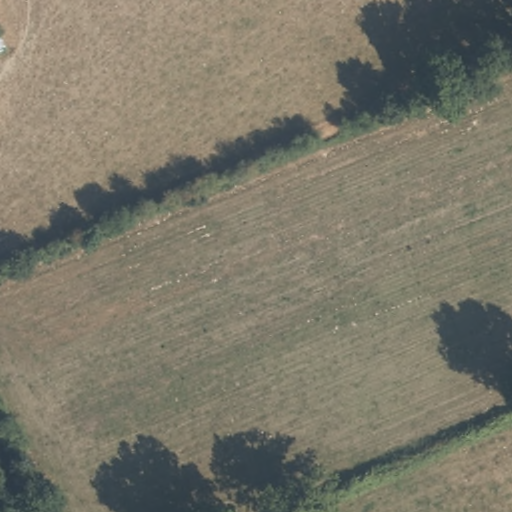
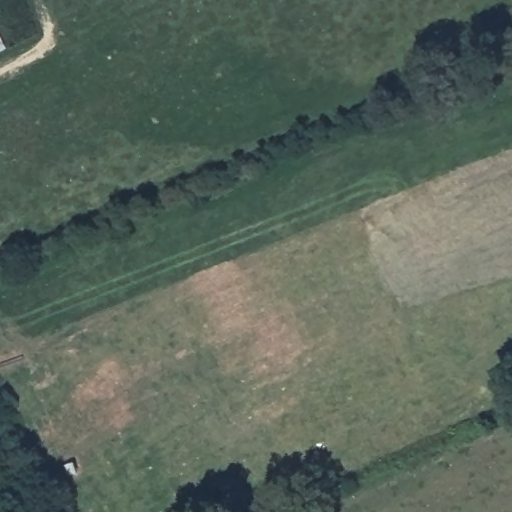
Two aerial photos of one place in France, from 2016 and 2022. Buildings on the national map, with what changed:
unchanged [(6,45),(0,48),(0,31),(6,45)]

